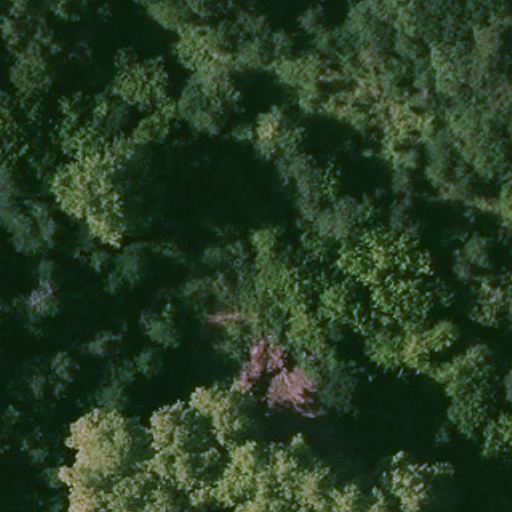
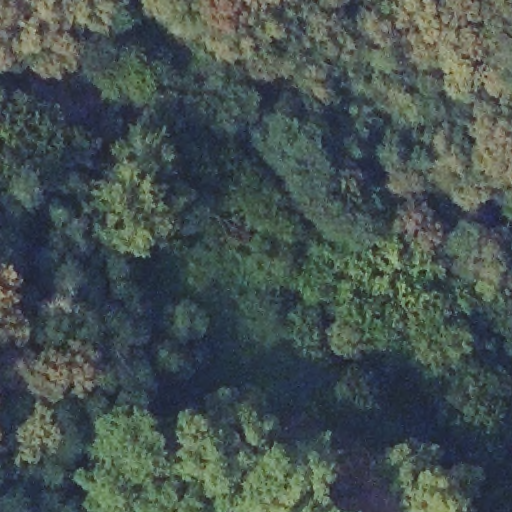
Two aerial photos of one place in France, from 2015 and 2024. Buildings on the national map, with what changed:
unchanged [(128,463),(148,467),(143,491),(124,487),(128,463)]

